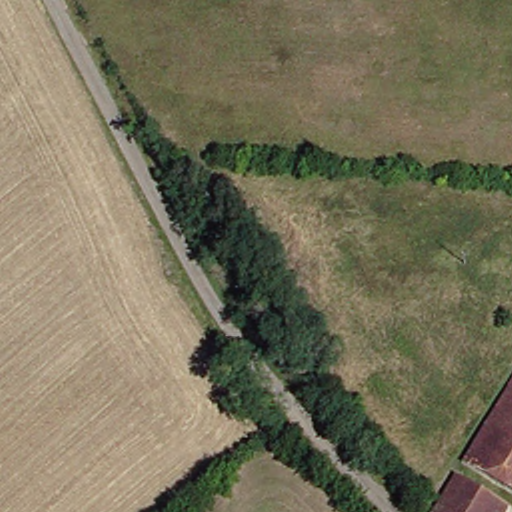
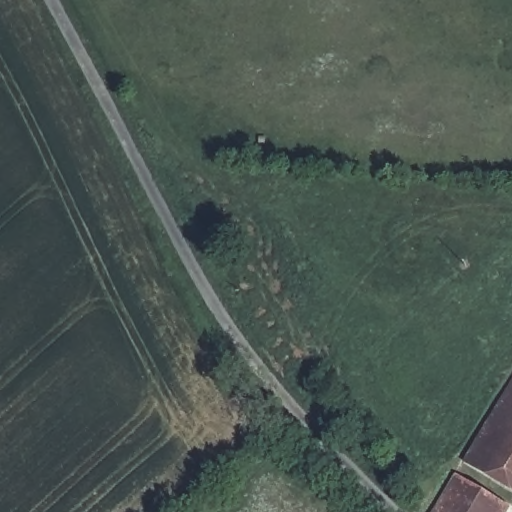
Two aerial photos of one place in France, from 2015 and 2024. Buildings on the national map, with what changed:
unchanged [(488,466),(481,459),(512,404),(512,478),(502,495),(478,481),(488,466)]
unchanged [(471,477),(478,481),(502,495),(512,501),(512,512),(451,512),(471,477)]

